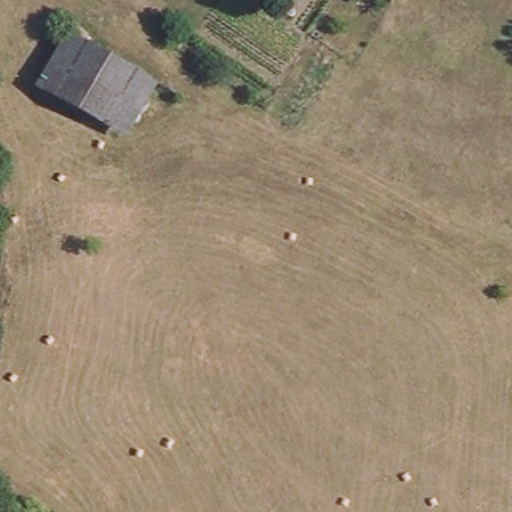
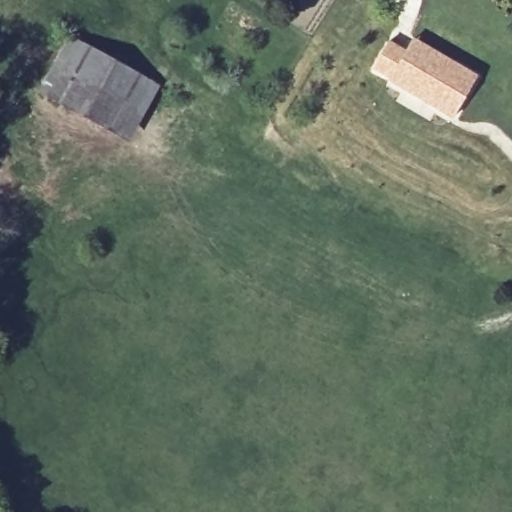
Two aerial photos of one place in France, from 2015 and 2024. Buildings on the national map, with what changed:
unchanged [(43,88),(74,33),(106,51),(73,105),(43,88)]
new [(371,69),(388,40),(407,49),(413,36),(476,75),(452,117),(390,80),(371,69)]
unchanged [(106,51),(157,82),(125,134),(73,105),(106,51)]

